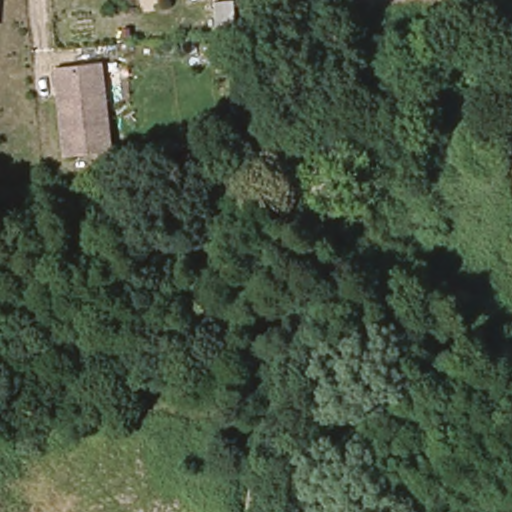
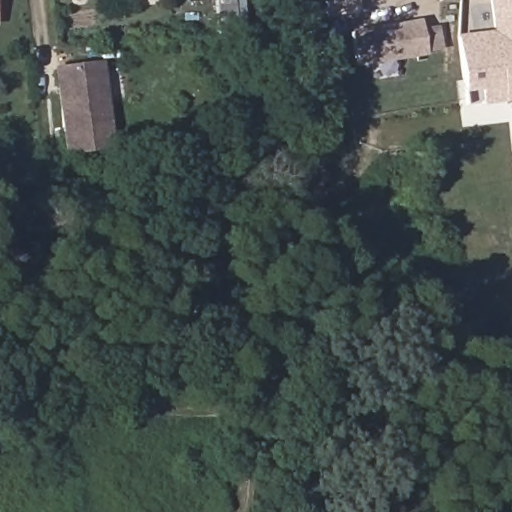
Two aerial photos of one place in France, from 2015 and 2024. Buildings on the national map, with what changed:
unchanged [(209,0),(221,0),(222,20),(210,21),(209,0)]
new [(481,106),(480,91),(463,93),(454,36),(491,30),(487,0),(512,0),(512,103),(481,106)]
new [(420,20),(421,28),(438,25),(443,54),(356,68),(350,31),(420,20)]
unchanged [(98,63),(106,147),(63,152),(55,68),(98,63)]
new [(511,122),(512,121),(512,126),(511,122)]

